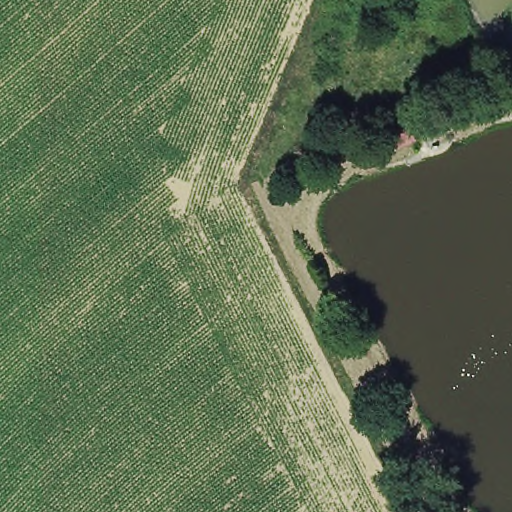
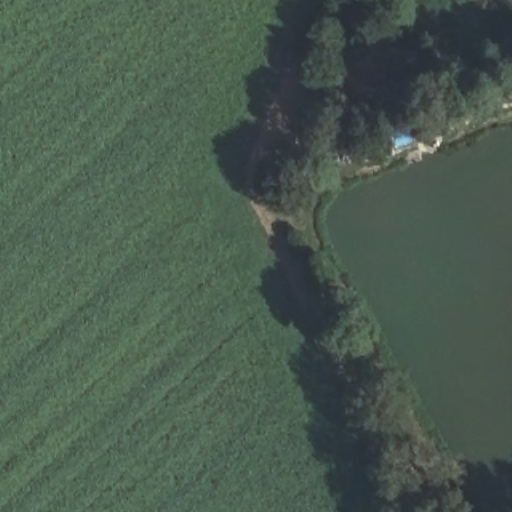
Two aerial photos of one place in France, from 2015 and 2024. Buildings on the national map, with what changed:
unchanged [(379,127),(404,119),(415,147),(385,156),(379,127)]

